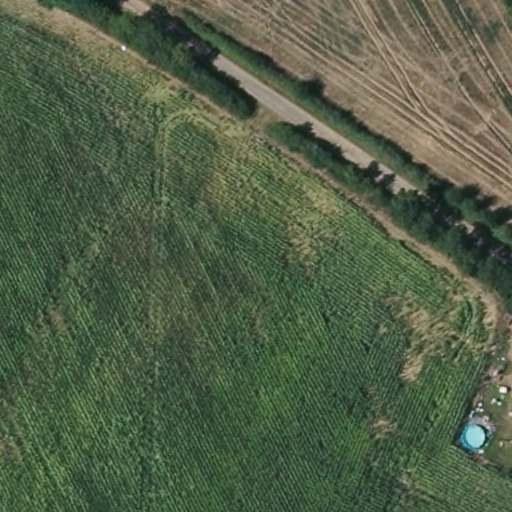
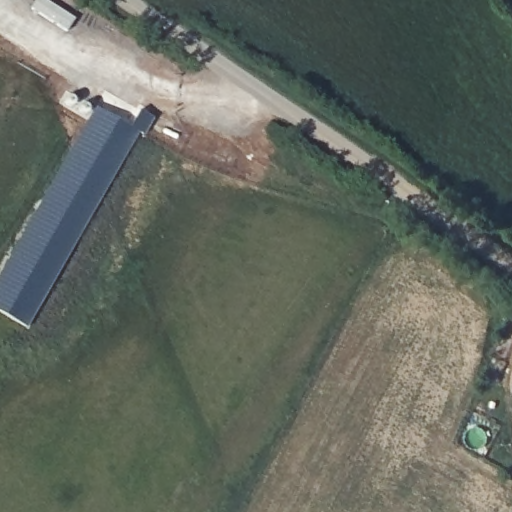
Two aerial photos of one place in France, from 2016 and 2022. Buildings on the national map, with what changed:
new [(94,109),(130,128),(139,111),(152,119),(143,135),(138,133),(27,328),(0,313),(0,274),(94,109)]

